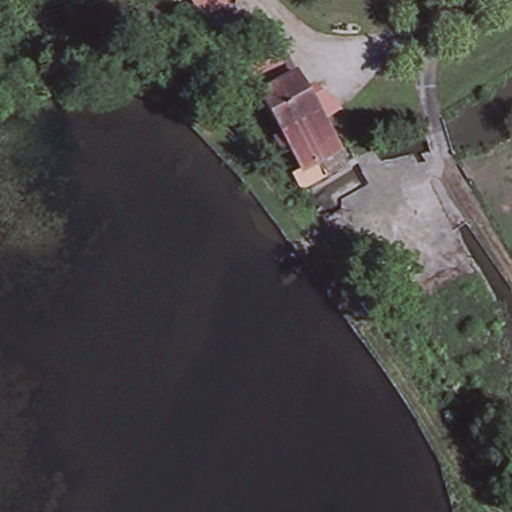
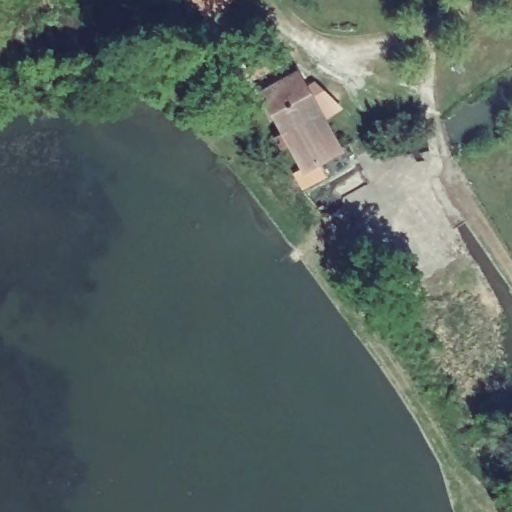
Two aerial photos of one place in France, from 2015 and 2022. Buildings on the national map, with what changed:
unchanged [(188,0),(235,0),(200,22),(188,0)]
unchanged [(304,186),(299,178),(306,174),(263,97),(250,74),(278,57),(292,81),(299,77),(342,154),(322,164),(327,172),(331,178),(307,192),(304,186)]
unchanged [(365,292),(379,311),(370,317),(356,300),(365,292)]

